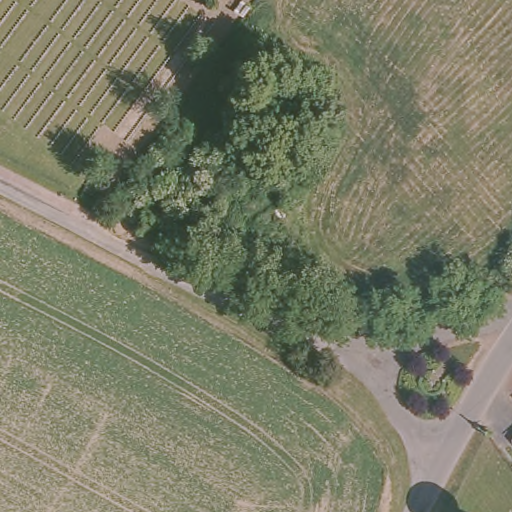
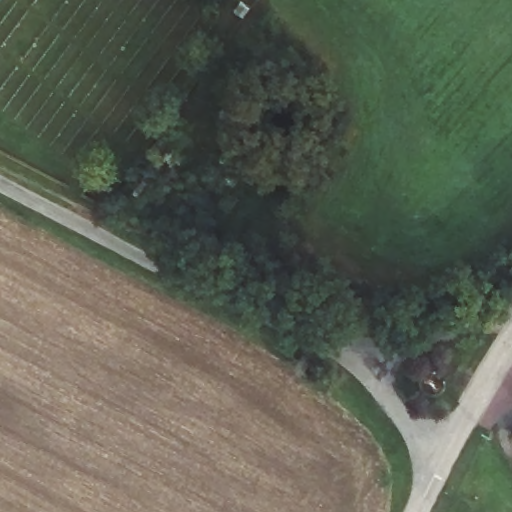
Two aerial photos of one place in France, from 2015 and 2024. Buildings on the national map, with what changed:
unchanged [(511,442),(512,442),(512,444),(511,442)]

